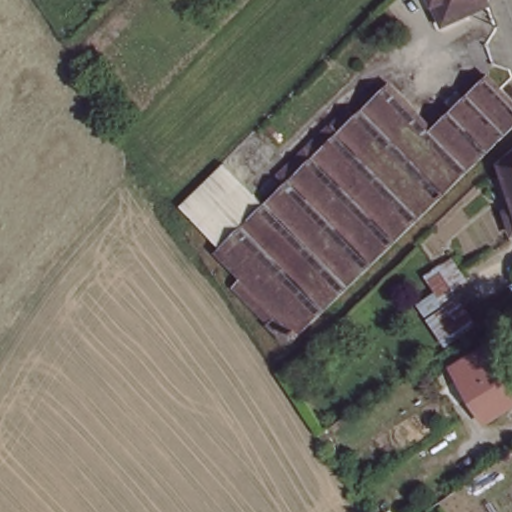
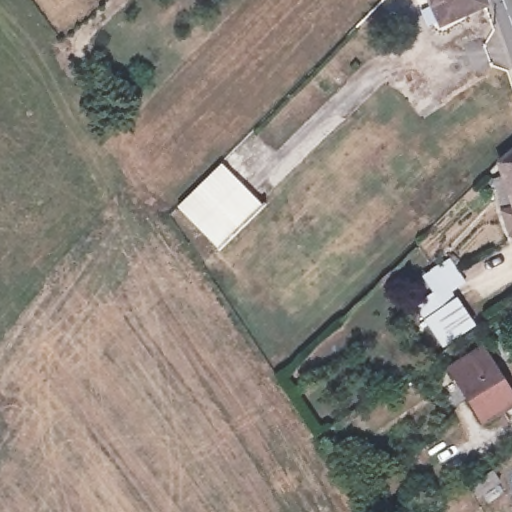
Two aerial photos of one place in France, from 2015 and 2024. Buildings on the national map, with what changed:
unchanged [(490,2),(427,26),(414,0),(489,0),(490,2)]
demolished [(428,129),(489,77),(512,101),(512,137),(484,165),(491,174),(302,341),(269,307),(234,272),(206,244),(273,181),(360,98),(378,81),(428,129)]
unchanged [(485,186),(500,177),(497,165),(512,152),(512,238),(502,242),(485,186)]
new [(178,207),(221,164),(262,207),(218,251),(178,207)]
unchanged [(444,350),(420,307),(434,295),(422,273),(450,256),(467,281),(452,293),(475,327),(444,350)]
unchanged [(512,407),(484,430),(445,381),(481,352),(512,390),(512,407)]

